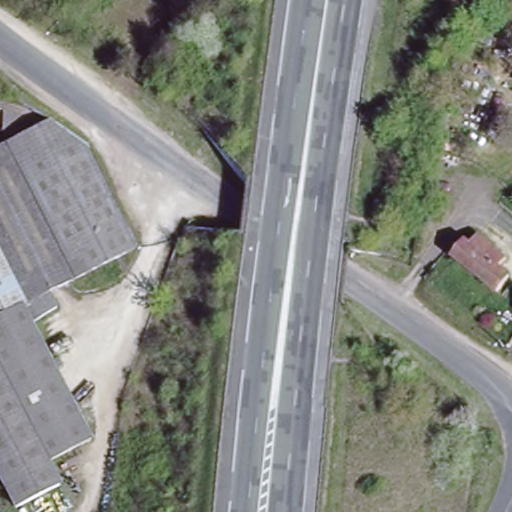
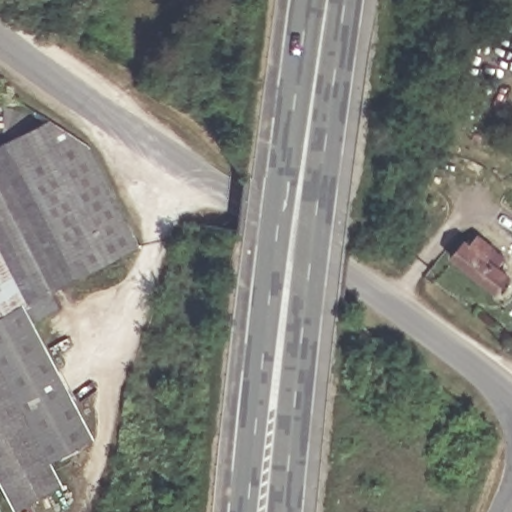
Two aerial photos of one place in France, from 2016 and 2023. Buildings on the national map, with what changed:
unchanged [(98,144),(144,243),(88,272),(19,137),(58,117),(98,144)]
unchanged [(19,137),(88,272),(54,289),(62,304),(32,320),(0,337),(0,147),(19,137)]
unchanged [(477,231),(493,243),(486,252),(508,270),(496,285),(452,251),(464,236),(469,239),(477,231)]
unchanged [(92,432),(48,455),(0,362),(0,337),(32,320),(34,323),(92,432)]
unchanged [(48,455),(60,478),(16,502),(0,471),(0,362),(48,455)]

